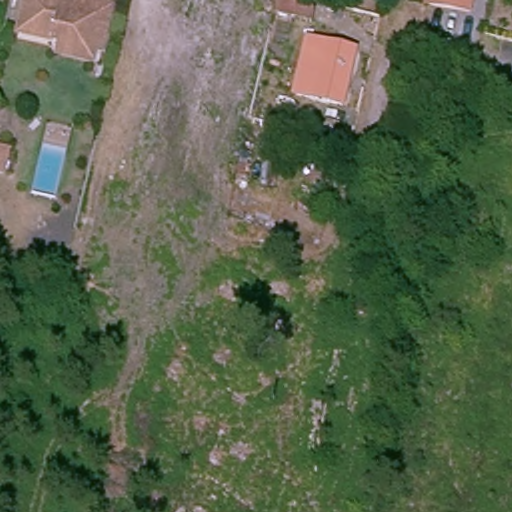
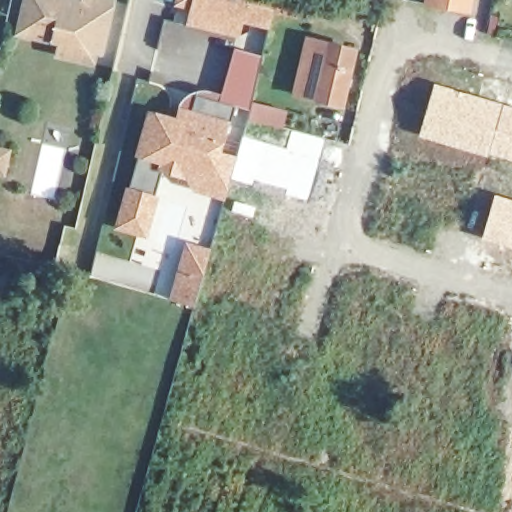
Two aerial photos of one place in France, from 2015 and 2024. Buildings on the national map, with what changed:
unchanged [(51,39),(14,30),(22,0),(112,0),(99,49),(95,64),(47,53),(51,39)]
new [(272,12),(269,28),(240,21),(237,36),(187,25),(190,10),(174,6),(175,0),(311,0),(306,20),(272,12)]
demolished [(311,0),(306,20),(272,12),(275,0),(311,0)]
unchanged [(424,3),(425,0),(468,0),(466,10),(424,3)]
unchanged [(348,50),(337,97),(293,88),(304,43),(348,50)]
new [(145,237),(115,228),(147,109),(175,117),(178,105),(180,101),(186,94),(198,89),(221,94),(234,49),(258,55),(223,199),(193,190),(184,178),(160,170),(152,195),(157,197),(145,237)]
new [(512,107),(512,162),(417,135),(433,83),(512,107)]
new [(512,199),(512,248),(481,238),(494,194),(512,199)]
new [(169,299),(185,242),(210,248),(194,307),(169,299)]

